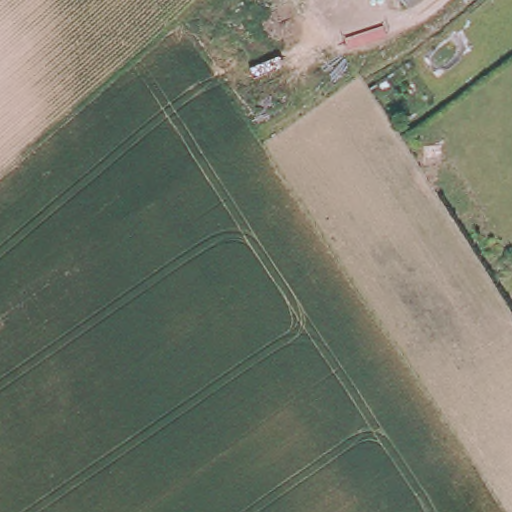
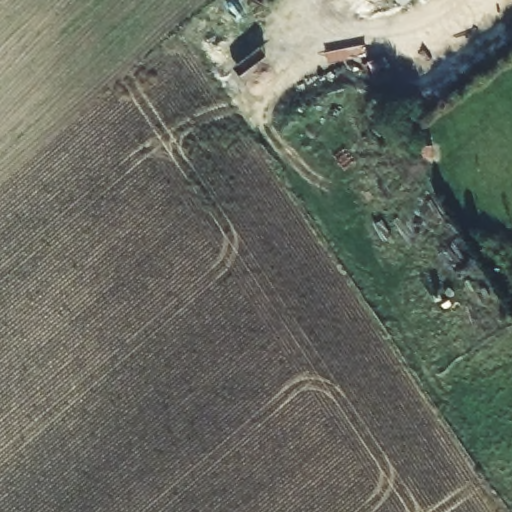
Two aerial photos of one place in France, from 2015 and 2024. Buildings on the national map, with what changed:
unchanged [(400,0),(411,0),(405,5),(400,0)]

